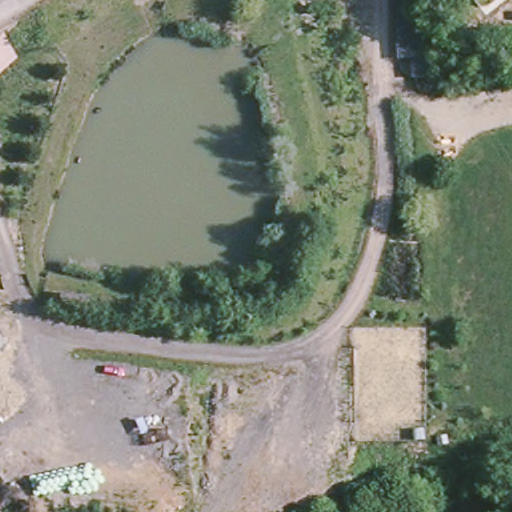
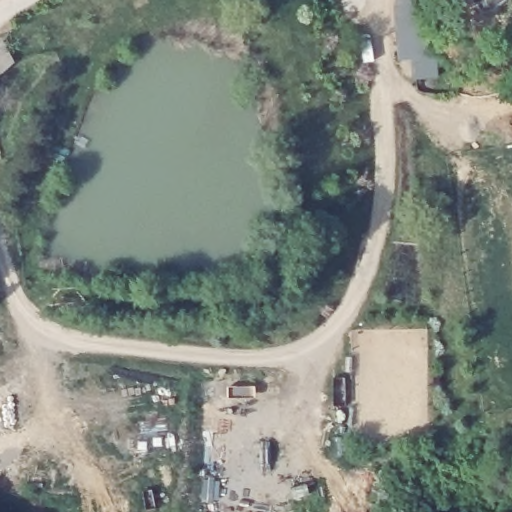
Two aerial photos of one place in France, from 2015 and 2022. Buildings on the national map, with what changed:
unchanged [(392,0),(426,0),(434,76),(413,78),(411,59),(397,60),(392,0)]

